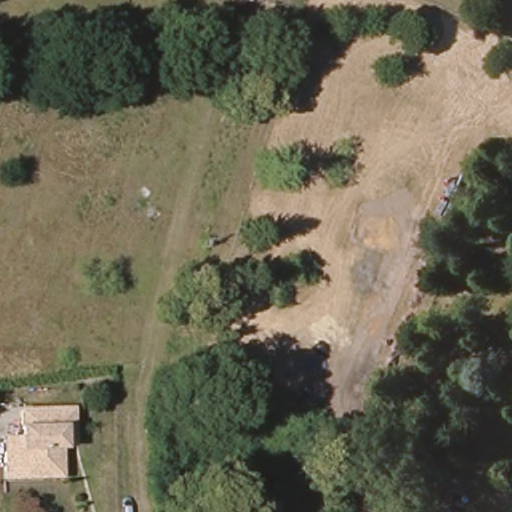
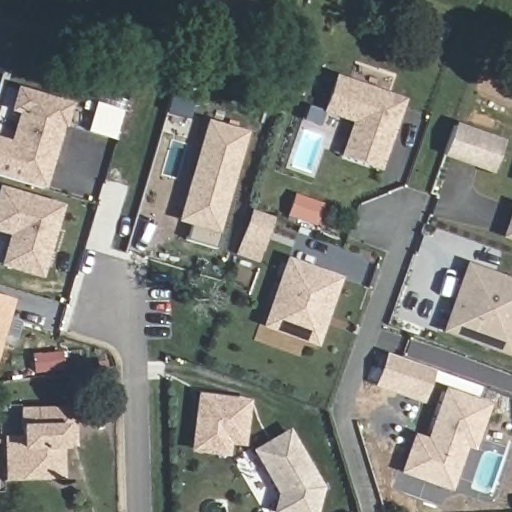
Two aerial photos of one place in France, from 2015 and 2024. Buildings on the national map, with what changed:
new [(342,155),(353,121),(324,111),(337,73),(407,98),(383,168),(342,155)]
new [(38,185),(0,174),(0,139),(8,141),(18,109),(9,106),(15,87),(65,102),(60,121),(58,120),(38,185)]
new [(219,224),(213,243),(182,234),(187,216),(177,213),(190,171),(196,149),(205,118),(241,128),(213,223),(219,224)]
new [(494,174),(445,156),(457,121),(507,138),(494,174)]
new [(0,261),(0,258),(8,230),(0,228),(0,188),(56,204),(51,222),(49,229),(36,272),(0,261)]
new [(289,216),(294,192),(325,202),(318,226),(289,216)]
new [(267,245),(243,236),(253,208),(277,216),(267,245)]
new [(512,209),(512,240),(503,237),(512,209)]
new [(320,347),(262,327),(286,256),(344,277),(320,347)]
new [(489,346),(446,330),(470,263),(512,279),(512,320),(501,316),(489,346)]
new [(0,324),(0,297),(7,299),(0,324)]
new [(386,352),(435,370),(423,404),(374,386),(386,352)]
new [(427,437),(445,387),(492,402),(475,450),(467,448),(451,491),(398,472),(413,433),(427,437)]
new [(251,400),(244,446),(231,444),(229,456),(190,451),(197,392),(251,400)]
unchanged [(58,461),(57,481),(38,482),(38,476),(23,475),(23,482),(6,482),(6,446),(23,445),(22,414),(78,413),(78,439),(78,453),(65,454),(66,460),(58,461)]
new [(273,512),(277,493),(252,449),(290,427),(324,487),(318,512),(273,512)]

